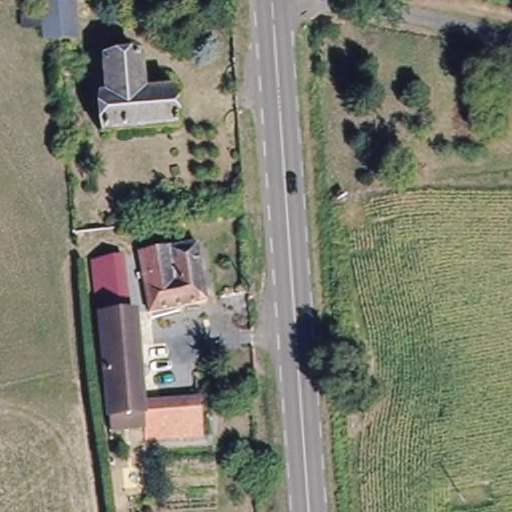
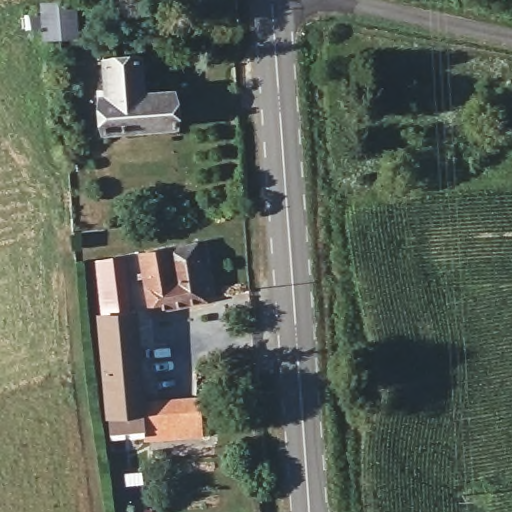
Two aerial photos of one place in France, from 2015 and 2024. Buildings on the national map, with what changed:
unchanged [(40,14),(40,2),(61,0),(70,0),(74,36),(43,38),(41,25),(20,27),(19,16),(40,14)]
unchanged [(104,95),(100,62),(135,57),(138,87),(155,86),(155,95),(169,95),(172,129),(98,136),(95,107),(94,96),(104,95)]
unchanged [(136,254),(190,242),(203,302),(149,312),(136,254)]
unchanged [(88,252),(114,250),(122,306),(93,308),(88,252)]
unchanged [(102,410),(93,308),(122,306),(127,305),(135,397),(190,394),(194,431),(139,436),(139,423),(103,426),(102,410)]

